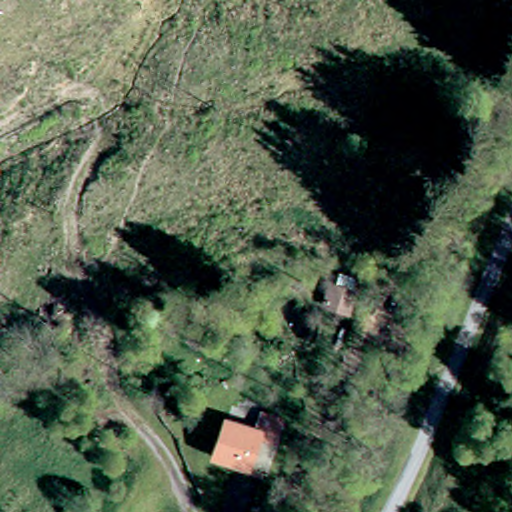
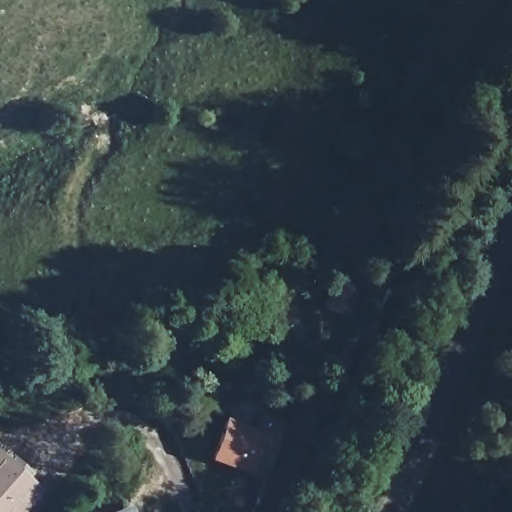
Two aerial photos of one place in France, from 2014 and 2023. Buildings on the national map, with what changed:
unchanged [(330,285),(357,293),(350,314),(323,307),(330,285)]
unchanged [(244,433),(247,420),(268,426),(293,432),(288,454),(262,447),(255,474),(198,458),(208,423),(244,433)]
new [(23,512),(0,512),(0,453),(42,491),(23,512)]

